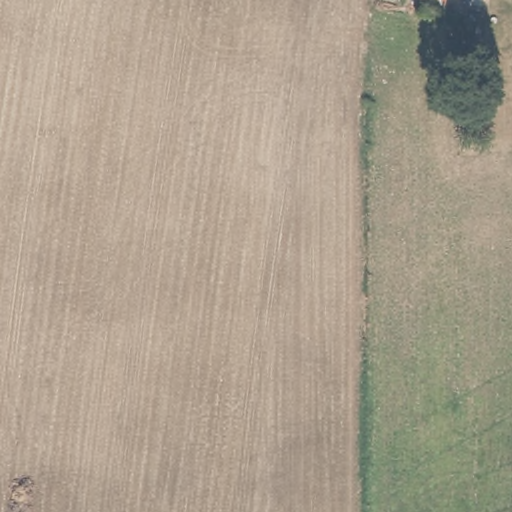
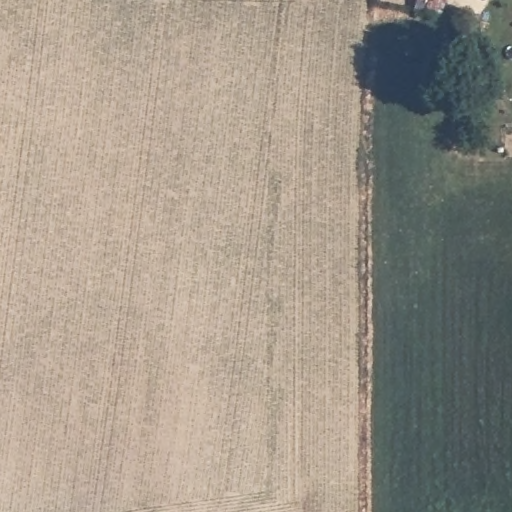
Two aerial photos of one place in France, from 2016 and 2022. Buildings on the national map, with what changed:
unchanged [(431,0),(449,0),(446,15),(428,10),(431,0)]

